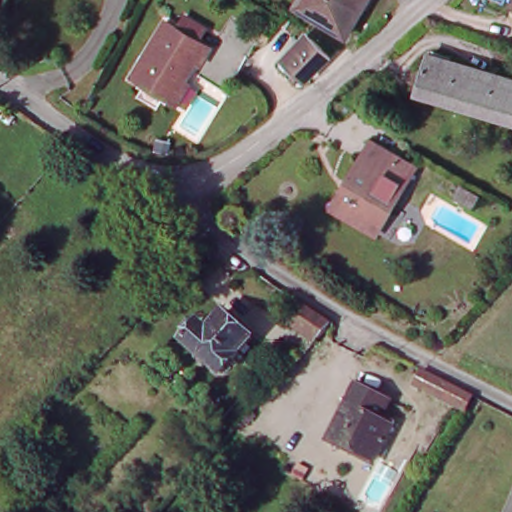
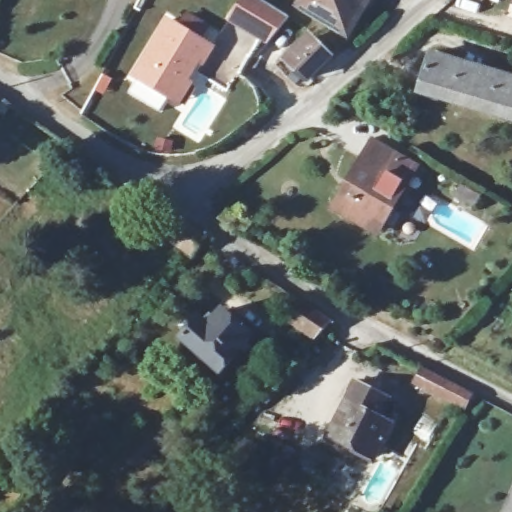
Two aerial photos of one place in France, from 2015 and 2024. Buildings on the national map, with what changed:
new [(226,20),(238,0),(261,0),(289,16),(281,30),(268,45),(226,20)]
unchanged [(295,4),(298,0),(365,0),(344,34),(295,4)]
unchanged [(182,100),(178,98),(138,74),(172,18),(184,25),(191,13),(211,25),(204,37),(216,44),(206,60),(202,58),(190,78),(194,81),(182,100)]
unchanged [(346,52),(337,47),(344,40),(353,47),(346,52)]
unchanged [(288,64),(299,41),(324,53),(312,78),(288,64)]
unchanged [(421,97),(433,56),(486,72),(473,113),(421,97)]
unchanged [(473,113),(486,72),(512,80),(512,125),(473,113)]
unchanged [(0,105),(0,101),(3,102),(0,105)]
unchanged [(375,233),(335,208),(374,148),(413,172),(375,233)]
unchanged [(206,242),(185,265),(157,242),(173,219),(206,242)]
unchanged [(284,320),(297,304),(331,322),(312,342),(284,320)]
unchanged [(224,306),(252,332),(220,368),(184,336),(203,315),(210,321),(224,306)]
unchanged [(453,411),(440,405),(414,390),(420,379),(447,393),(459,399),(453,411)]
unchanged [(392,423),(369,463),(324,436),(353,386),(383,403),(379,415),(392,423)]

